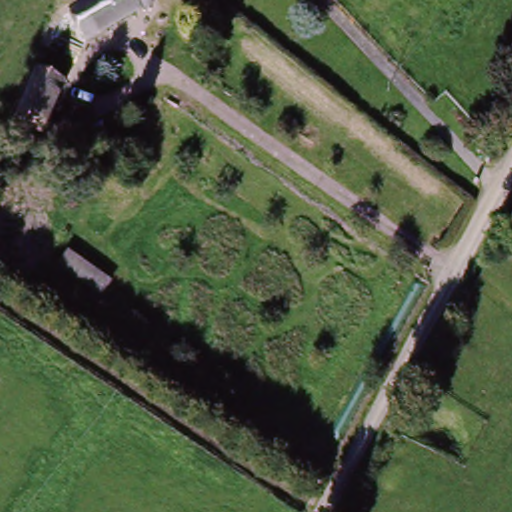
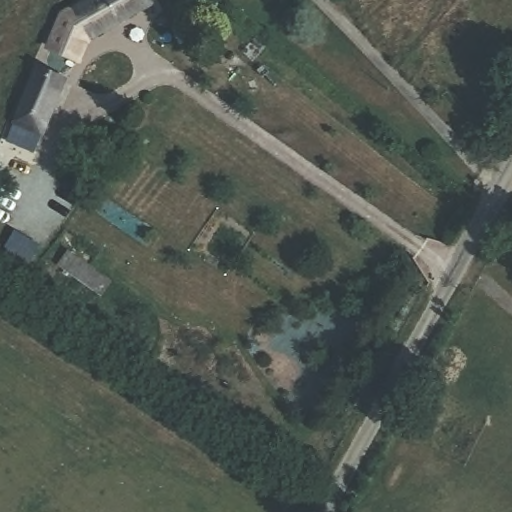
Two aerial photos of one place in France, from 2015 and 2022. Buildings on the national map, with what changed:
unchanged [(82,37),(68,11),(88,0),(143,0),(144,2),(82,37)]
unchanged [(40,125),(16,115),(37,67),(61,78),(40,125)]
unchanged [(55,274),(60,260),(109,278),(104,291),(55,274)]

